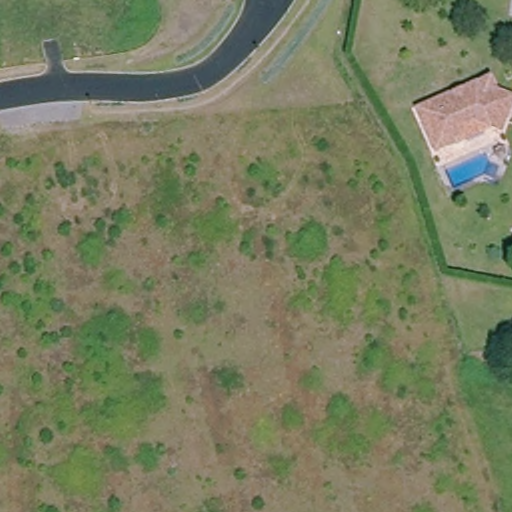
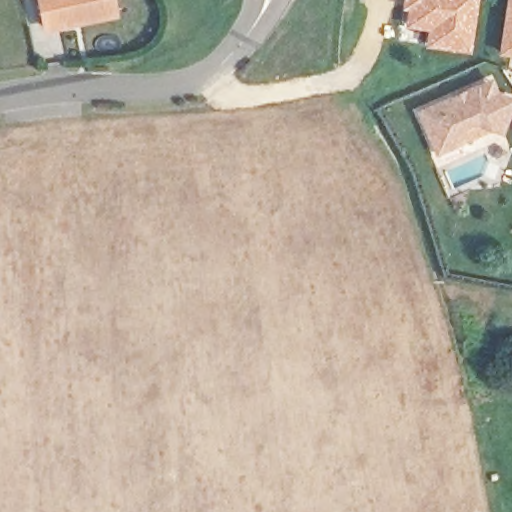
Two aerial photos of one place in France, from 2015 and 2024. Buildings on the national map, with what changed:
new [(57,24),(56,21),(40,24),(35,0),(113,0),(115,12),(79,20),(73,20),(57,24)]
new [(400,0),(478,0),(469,54),(423,47),(425,30),(402,25),(404,10),(399,9),(400,0)]
new [(497,55),(505,0),(512,0),(512,57),(497,55)]
unchanged [(474,126),(468,130),(469,135),(454,141),(457,149),(434,156),(416,115),(478,91),(501,100),(512,106),(512,116),(509,121),(501,139),(474,126)]

